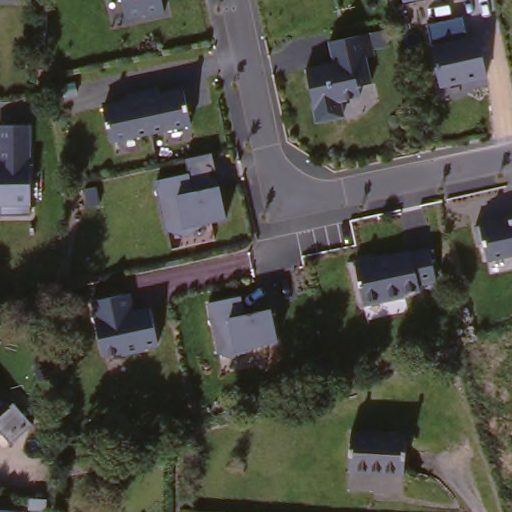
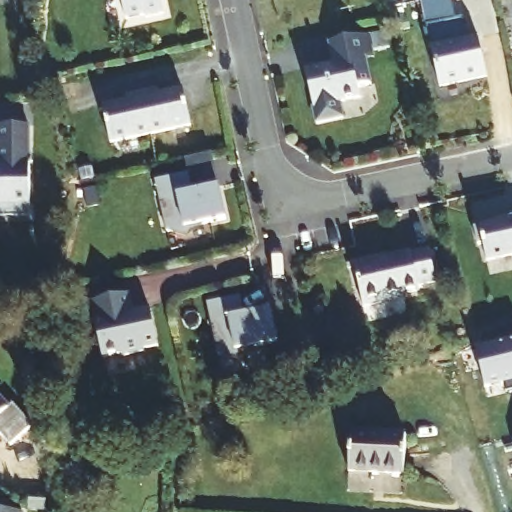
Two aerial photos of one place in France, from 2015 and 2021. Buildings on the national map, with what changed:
unchanged [(165,11),(147,15),(146,13),(127,17),(123,0),(163,0),(165,11)]
unchanged [(439,88),(418,3),(442,0),(454,0),(463,39),(478,37),(486,77),(439,88)]
unchanged [(337,58),(333,37),(373,28),(378,51),(369,53),(374,78),(361,81),(363,91),(343,96),(346,111),(321,117),(309,65),(337,58)]
unchanged [(196,118),(115,135),(108,100),(132,95),(131,88),(163,81),(164,89),(188,84),(196,118)]
unchanged [(26,123),(27,179),(28,216),(0,216),(0,123),(26,123)]
unchanged [(197,225),(183,241),(164,232),(156,181),(187,176),(191,190),(218,186),(223,218),(197,225)]
unchanged [(501,219),(512,216),(512,255),(483,261),(480,244),(475,245),(471,228),(501,221),(501,219)]
unchanged [(356,261),(374,257),(374,260),(431,249),(437,280),(419,284),(421,289),(404,292),(405,294),(386,298),(386,300),(364,304),(356,261)]
unchanged [(102,358),(89,303),(129,294),(133,313),(151,309),(158,346),(102,358)]
unchanged [(233,351),(232,349),(216,353),(204,306),(241,299),(244,313),(268,308),(275,343),(233,351)]
new [(512,391),(504,392),(502,383),(483,387),(474,350),(512,340),(512,391)]
unchanged [(3,407),(8,403),(28,425),(6,444),(0,437),(0,403),(3,407)]
unchanged [(353,474),(354,435),(409,438),(406,477),(353,474)]
unchanged [(23,512),(0,512),(0,509),(23,511),(23,512)]

